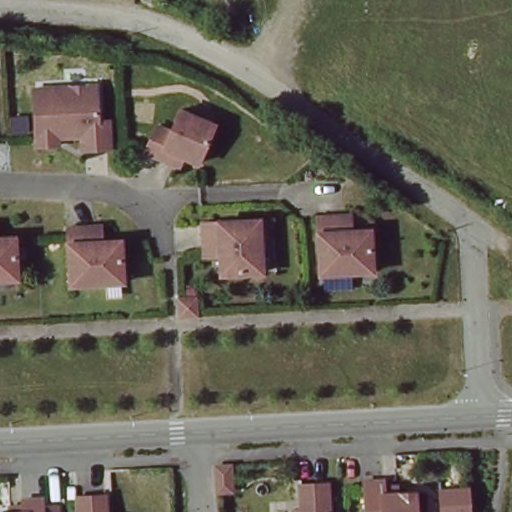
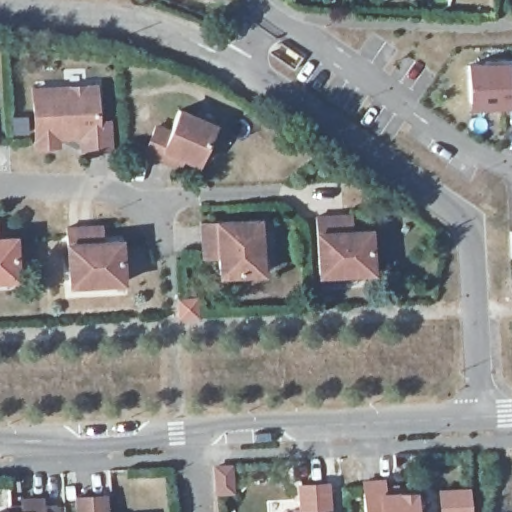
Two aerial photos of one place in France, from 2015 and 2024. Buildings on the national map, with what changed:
new [(484,61),(512,59),(512,87),(505,87),(506,104),(468,106),(466,63),(484,63),(484,61)]
unchanged [(62,126),(57,127),(57,140),(36,141),(32,84),(95,81),(97,116),(108,116),(110,143),(81,145),(81,131),(63,131),(62,126)]
unchanged [(167,159),(139,146),(150,120),(164,126),(174,105),(208,119),(191,158),(178,152),(173,161),(167,159)]
unchanged [(350,267),(314,269),(311,211),(339,210),(346,209),(346,225),(365,224),(366,258),(367,266),(350,267)]
unchanged [(249,263),(215,265),(214,247),(198,248),(197,241),(196,213),(253,210),(255,246),(256,263),(249,263)]
unchanged [(100,278),(64,280),(61,222),(90,221),(96,220),(97,236),(115,235),(117,269),(117,277),(100,278)]
new [(511,258),(509,230),(512,229),(512,257),(511,258)]
unchanged [(0,274),(0,232),(9,232),(11,266),(12,273),(0,274)]
unchanged [(178,299),(194,298),(195,298),(196,315),(179,316),(178,299)]
unchanged [(230,464),(231,488),(231,491),(216,491),(215,464),(230,464)]
unchanged [(416,512),(365,512),(363,481),(383,480),(396,480),(397,493),(415,492),(416,512)]
unchanged [(299,510),(305,509),(304,485),(332,483),(333,512),(299,512),(299,510)]
unchanged [(469,489),(470,512),(440,512),(439,491),(469,489)]
unchanged [(77,497),(104,495),(105,512),(77,512),(77,497)]
unchanged [(41,499),(42,512),(9,512),(9,507),(22,506),(22,500),(41,499)]

